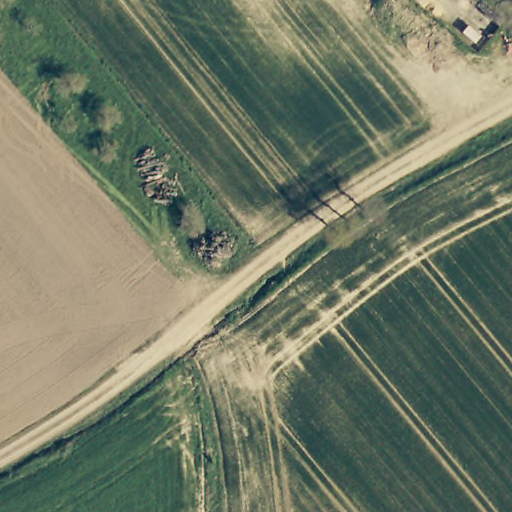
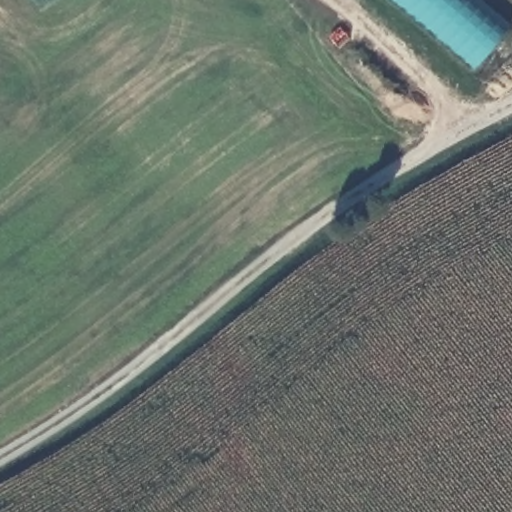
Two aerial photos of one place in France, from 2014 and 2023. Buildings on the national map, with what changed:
new [(511,22),(476,67),(393,0),(484,0),(511,22)]

